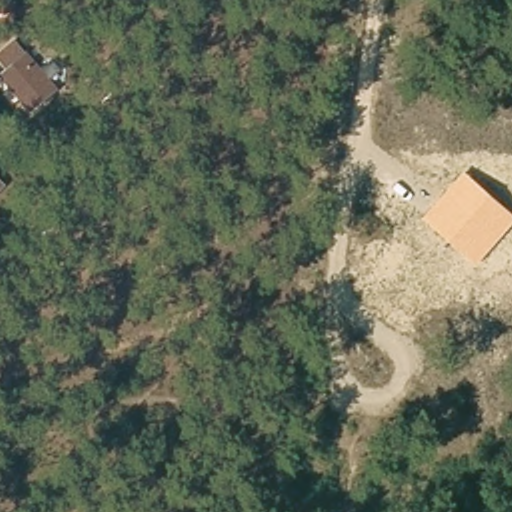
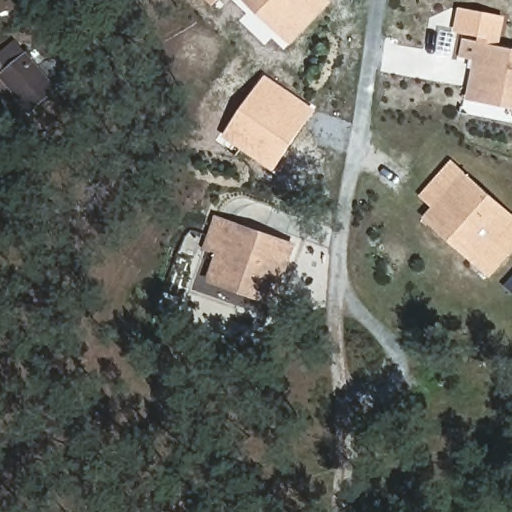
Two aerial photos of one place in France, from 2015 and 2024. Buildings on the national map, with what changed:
new [(333,5),(292,45),(242,0),(328,0),(333,5)]
new [(463,9),(507,19),(500,41),(457,31),(463,9)]
new [(512,49),(512,107),(466,100),(471,61),(460,58),(463,40),(512,49)]
unchanged [(9,70),(27,55),(55,90),(29,112),(19,100),(0,77),(9,70)]
new [(317,109),(279,170),(231,137),(269,78),(317,109)]
unchanged [(492,278),(424,217),(433,206),(425,196),(454,164),(512,215),(512,252),(492,278)]
unchanged [(0,188),(0,179),(4,184),(0,188)]
new [(276,306),(206,283),(214,255),(204,251),(216,215),(296,244),(276,306)]

